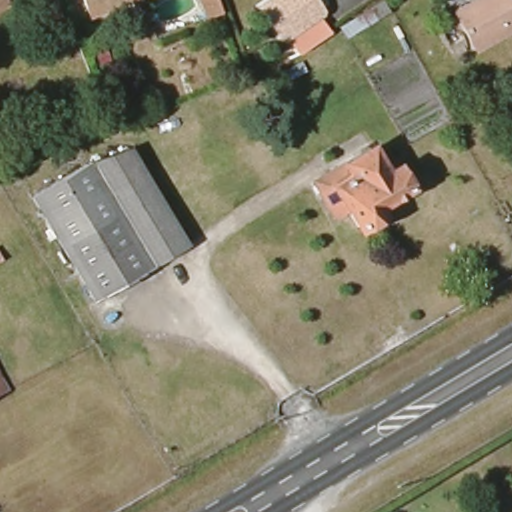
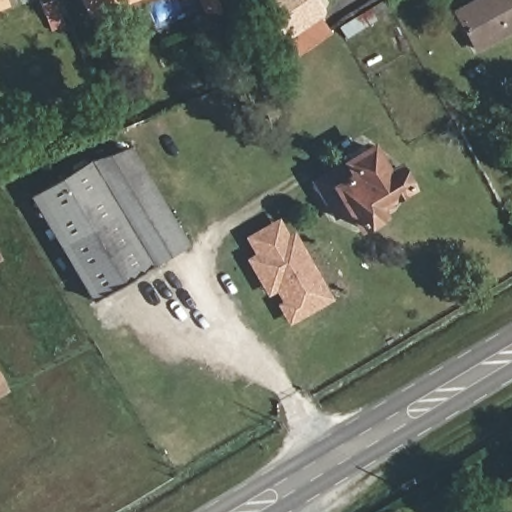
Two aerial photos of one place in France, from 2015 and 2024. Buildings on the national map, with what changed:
unchanged [(1,0),(3,6),(0,7),(0,0),(1,0)]
unchanged [(44,16),(37,0),(54,0),(59,10),(60,14),(45,20),(44,16)]
unchanged [(90,0),(119,0),(94,10),(90,0)]
unchanged [(202,19),(195,0),(218,0),(222,11),(202,19)]
new [(284,35),(261,5),(268,0),(316,0),(325,13),(316,20),(313,15),(284,35)]
unchanged [(503,0),(512,15),(512,24),(473,47),(453,13),(474,0),(503,0)]
unchanged [(322,36),(296,54),(284,35),(313,15),(325,34),(322,36)]
unchanged [(371,147),(387,174),(398,168),(412,189),(380,209),(384,217),(361,230),(349,210),(336,218),(315,182),(371,147)]
unchanged [(128,148),(185,244),(150,265),(88,161),(128,148)]
unchanged [(150,265),(90,303),(27,198),(88,161),(150,265)]
new [(257,255),(248,239),(277,222),(287,239),(257,255)]
new [(295,319),(270,277),(261,282),(249,260),(292,235),(329,299),(295,319)]
new [(276,288),(268,293),(261,282),(270,276),(276,288)]
new [(290,322),(280,305),(285,303),(295,319),(290,322)]
unchanged [(0,392),(0,381),(5,389),(0,392)]

